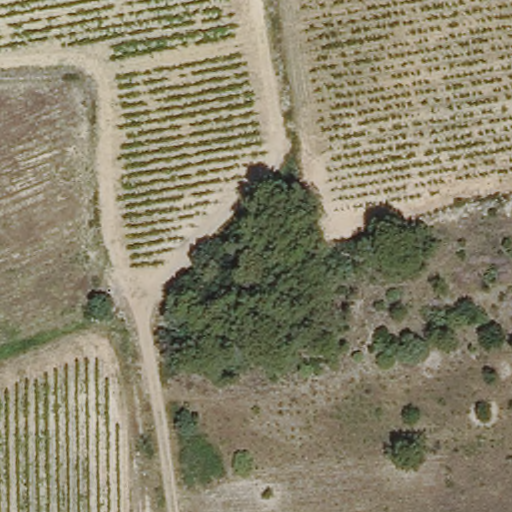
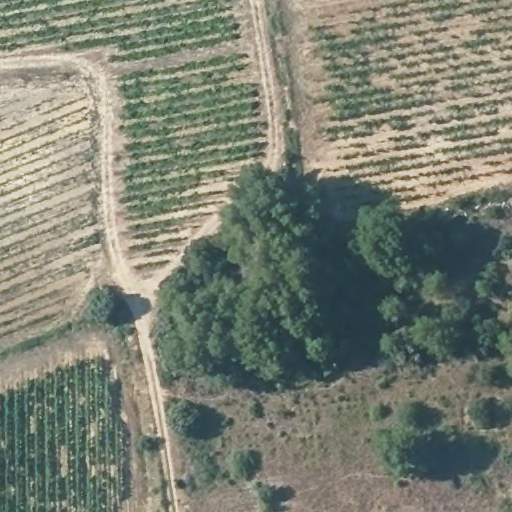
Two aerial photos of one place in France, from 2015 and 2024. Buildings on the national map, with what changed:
[]

